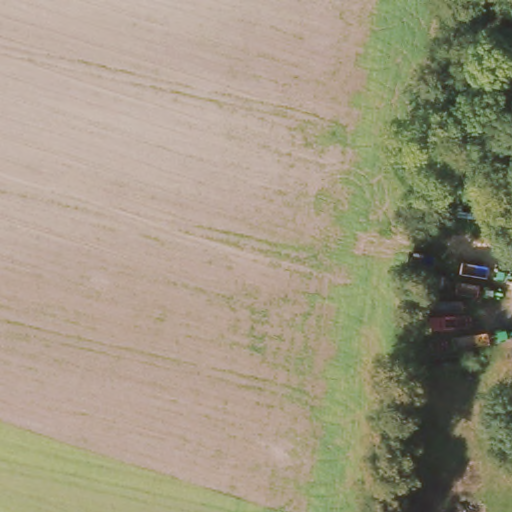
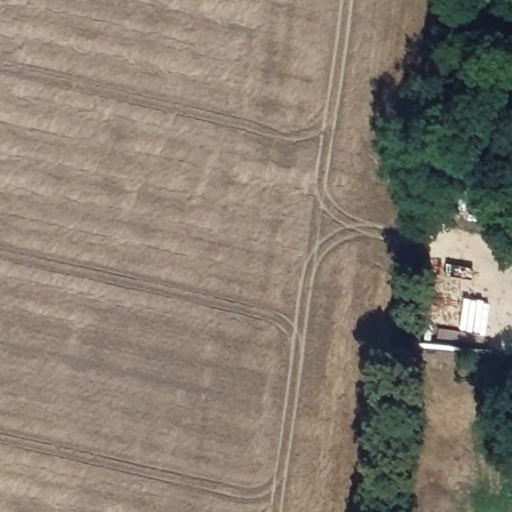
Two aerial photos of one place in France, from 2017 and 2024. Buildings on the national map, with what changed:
[]

